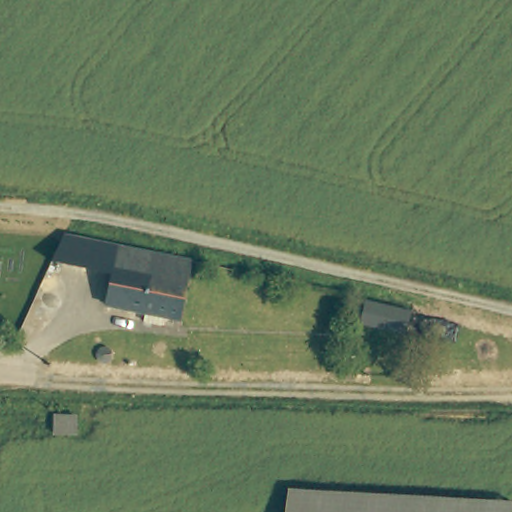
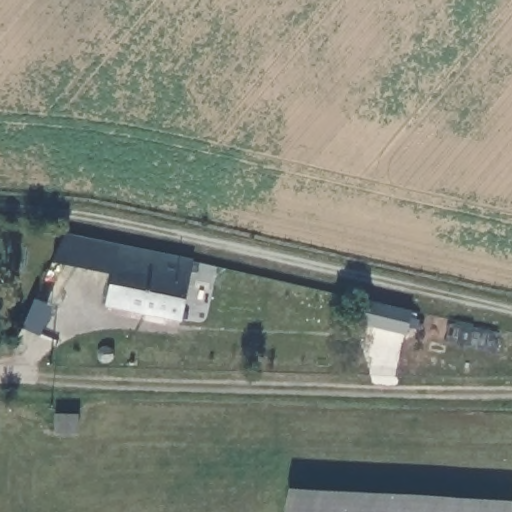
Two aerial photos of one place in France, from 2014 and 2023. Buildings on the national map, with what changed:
unchanged [(72,239),(189,260),(179,319),(162,316),(161,325),(140,322),(141,312),(104,306),(111,272),(69,262),(72,239)]
unchanged [(50,415),(75,415),(74,432),(50,432),(50,415)]
unchanged [(290,488),(511,502),(510,512),(288,512),(290,488)]

